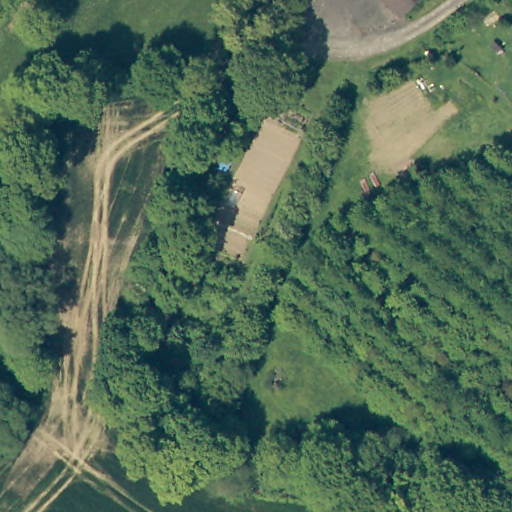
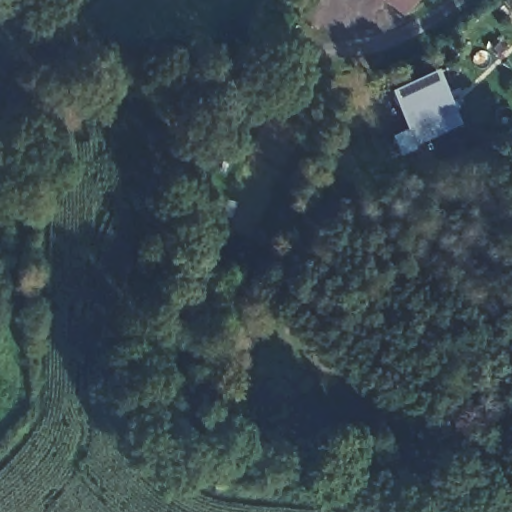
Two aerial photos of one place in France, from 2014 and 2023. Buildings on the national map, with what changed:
unchanged [(392,0),(417,0),(408,13),(392,0)]
new [(435,71),(454,111),(456,110),(462,124),(416,147),(408,132),(389,92),(435,71)]

